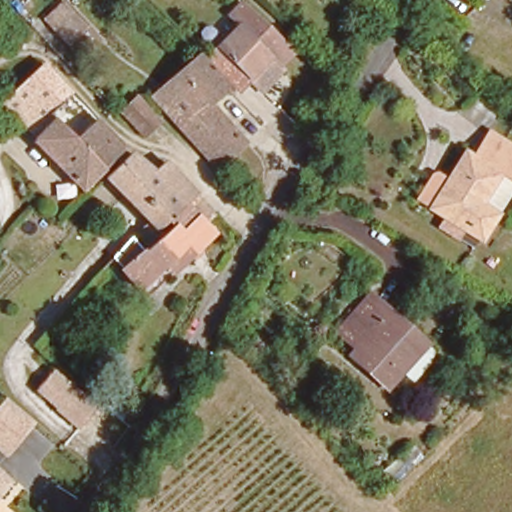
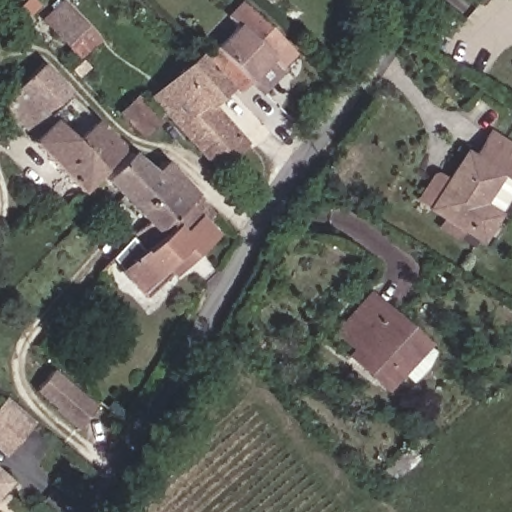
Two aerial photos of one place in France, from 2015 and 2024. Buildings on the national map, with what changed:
unchanged [(73,45),(66,38),(48,18),(65,0),(84,19),(92,28),(73,45)]
unchanged [(237,0),(246,0),(294,51),(281,62),(271,53),(236,86),(203,53),(238,18),(229,8),(237,0)]
unchanged [(223,82),(206,99),(241,136),(213,162),(156,105),(176,84),(172,80),(177,75),(182,78),(191,68),(200,58),(223,82)]
unchanged [(33,137),(36,134),(0,95),(0,85),(5,80),(13,88),(46,59),(68,84),(48,105),(73,132),(94,112),(104,122),(123,142),(119,149),(86,182),(82,186),(33,137)]
unchanged [(159,115),(142,129),(119,105),(137,91),(138,92),(140,94),(153,108),(159,115)]
unchanged [(481,232),(428,199),(428,198),(415,189),(429,168),(439,168),(445,172),(463,145),(471,150),(488,123),(512,138),(512,182),(497,206),(481,232)]
unchanged [(150,219),(125,193),(107,174),(114,167),(133,148),(152,168),(154,171),(186,205),(161,229),(166,235),(151,249),(136,234),(150,219)]
unchanged [(166,235),(161,229),(186,205),(199,192),(209,202),(221,213),(211,224),(214,229),(144,298),(108,263),(132,236),(149,252),(151,249),(166,235)]
unchanged [(383,363),(341,329),(373,291),(434,337),(397,383),(380,369),(383,363)]
unchanged [(47,365),(89,401),(74,421),(54,405),(57,401),(33,381),(47,365)]
unchanged [(0,450),(0,407),(7,398),(38,424),(9,458),(0,450)]
unchanged [(0,497),(0,473),(12,483),(0,497)]

